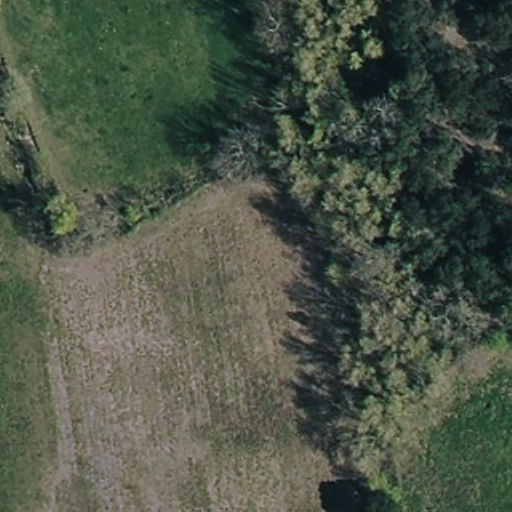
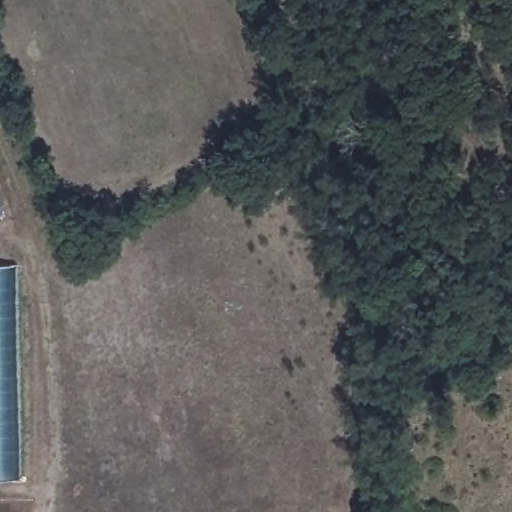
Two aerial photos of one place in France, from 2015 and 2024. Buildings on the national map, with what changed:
new [(13,480),(0,480),(0,264),(10,264),(13,480)]

